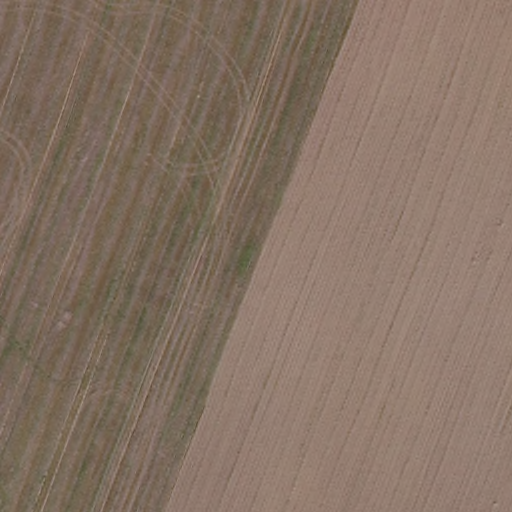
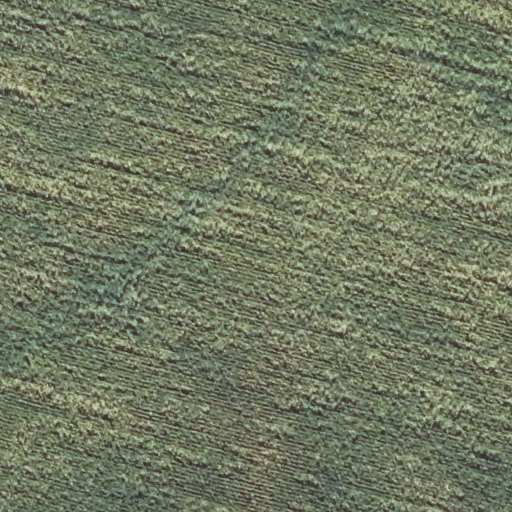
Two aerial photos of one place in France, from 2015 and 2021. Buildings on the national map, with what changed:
[]

